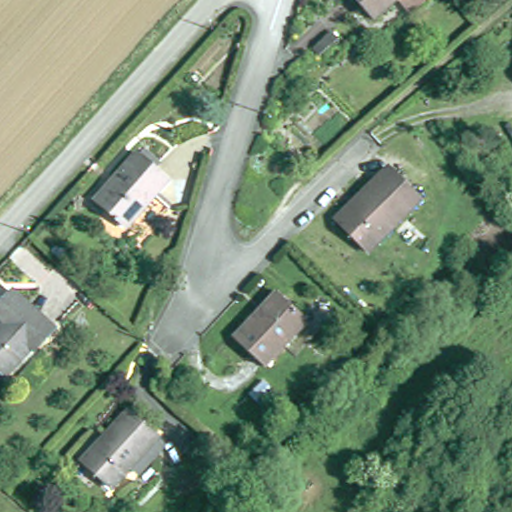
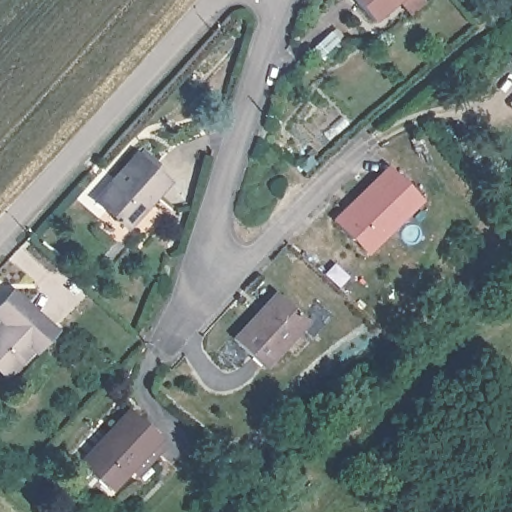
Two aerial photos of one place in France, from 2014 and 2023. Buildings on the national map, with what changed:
unchanged [(355,0),(403,0),(376,23),(355,0)]
unchanged [(173,184),(158,199),(173,213),(148,240),(132,227),(129,230),(93,198),(135,150),(173,184)]
unchanged [(378,184),(389,172),(419,201),(369,250),(337,219),(374,181),(378,184)]
unchanged [(312,326),(269,371),(240,343),(283,298),(312,326)]
unchanged [(37,357),(9,386),(6,383),(0,377),(0,333),(5,328),(0,323),(0,316),(15,300),(55,338),(37,357)]
unchanged [(111,494),(83,468),(132,418),(159,444),(111,494)]

